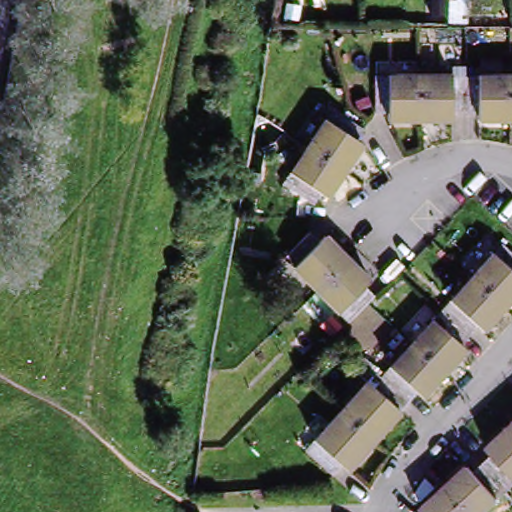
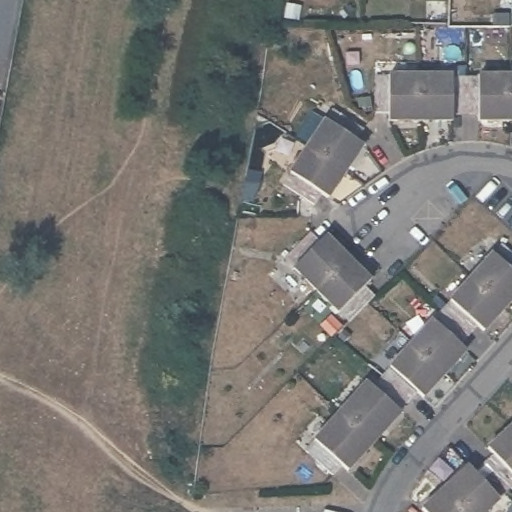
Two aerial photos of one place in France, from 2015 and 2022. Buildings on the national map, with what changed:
unchanged [(466,21),(450,21),(451,6),(451,0),(467,0),(466,21)]
unchanged [(422,115),(390,116),(390,109),(388,109),(376,109),(376,74),(421,74),(422,115)]
unchanged [(421,74),(466,74),(466,109),(452,109),(452,115),(425,115),(422,115),(421,74)]
unchanged [(510,74),(510,116),(480,115),(480,109),(466,109),(466,74),(510,74)]
unchanged [(510,116),(510,74),(512,74),(512,116),(510,116)]
unchanged [(352,137),(353,138),(358,141),(341,165),(340,167),(304,144),(330,106),(360,126),(352,137)]
unchanged [(279,180),(304,144),(340,167),(322,193),(316,189),(310,201),(279,180)]
unchanged [(320,239),(325,234),(326,233),(348,255),(318,286),(285,254),(310,229),(320,239)]
unchanged [(505,303),(473,274),(504,241),(512,248),(512,295),(505,303)]
unchanged [(370,277),(368,279),(365,281),(375,292),(367,299),(350,316),(340,307),(325,323),(303,302),(318,286),(348,255),(370,277)]
unchanged [(484,326),(480,321),(470,332),(443,307),(473,274),(505,303),(484,326)]
unchanged [(412,341),(443,307),(470,332),(460,341),(466,346),(445,370),(412,341)]
unchanged [(445,370),(425,393),(419,388),(409,399),(382,374),(374,367),(382,358),(376,352),(399,328),(412,341),(445,370)]
unchanged [(375,437),(342,407),(368,379),(373,384),(382,374),(409,399),(375,437)]
unchanged [(333,471),(306,446),(342,407),(375,437),(347,466),(342,461),(333,471)]
unchanged [(507,423),(512,418),(512,427),(507,423)]
unchanged [(490,450),(485,444),(507,423),(512,427),(512,478),(504,485),(480,459),(490,450)]
unchanged [(475,512),(467,512),(441,484),(465,462),(471,468),(480,459),(504,485),(475,512)]
unchanged [(441,484),(467,512),(420,512),(423,509),(419,505),(441,484)]

